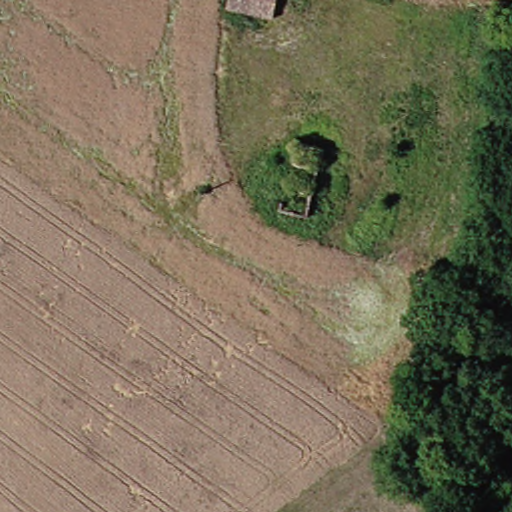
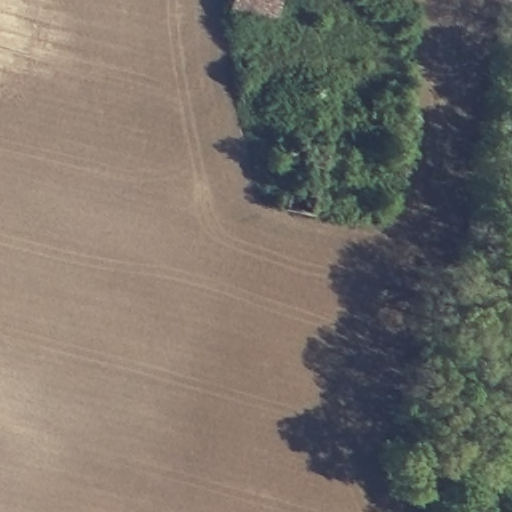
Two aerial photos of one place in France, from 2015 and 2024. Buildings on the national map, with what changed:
unchanged [(269,17),(227,5),(228,0),(274,0),(269,17)]

